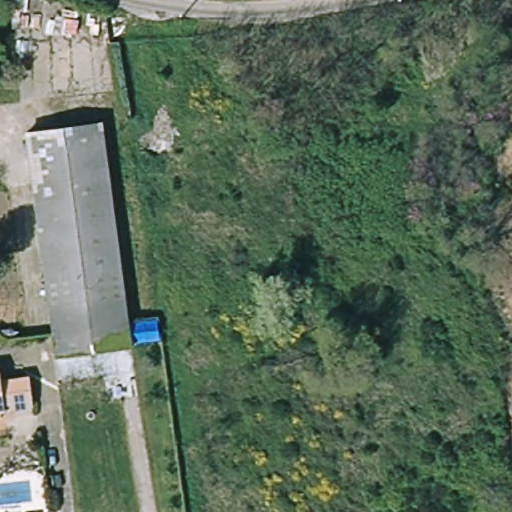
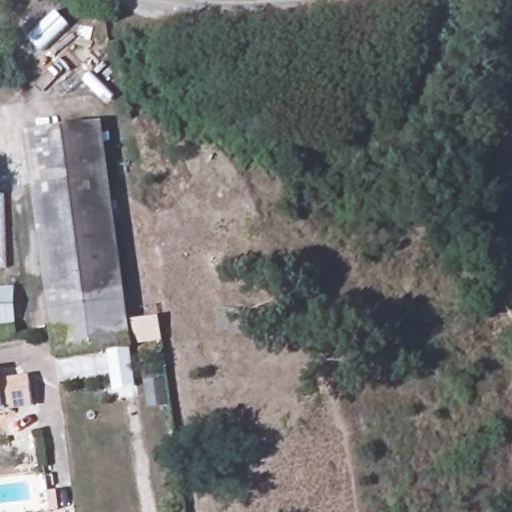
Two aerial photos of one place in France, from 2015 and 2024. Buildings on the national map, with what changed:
unchanged [(23,126),(101,114),(126,321),(51,332),(23,126)]
new [(0,324),(0,287),(15,287),(15,323),(0,324)]
unchanged [(2,381),(38,375),(41,396),(0,402),(0,368),(2,381)]

